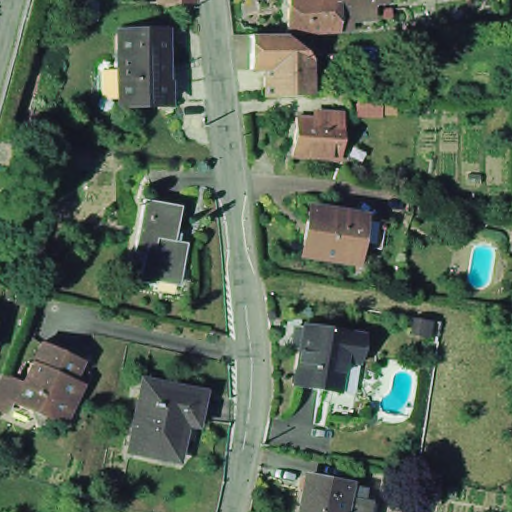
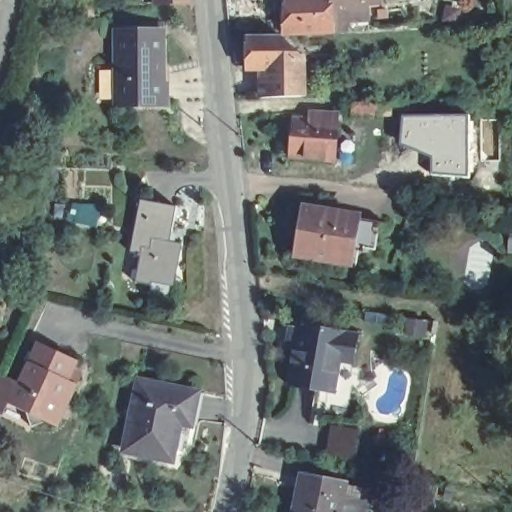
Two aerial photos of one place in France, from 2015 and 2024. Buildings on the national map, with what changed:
unchanged [(189,0),(189,3),(156,2),(156,0),(189,0)]
unchanged [(304,34),(304,33),(288,33),(290,0),(384,0),(384,1),(371,3),(373,18),(350,20),(350,29),(338,30),(338,32),(304,34)]
new [(444,3),(475,6),(471,28),(441,23),(444,3)]
unchanged [(383,10),(391,9),(392,16),(384,16),(383,10)]
unchanged [(119,38),(119,29),(166,29),(166,38),(167,107),(119,108),(119,38)]
unchanged [(277,56),(269,56),(264,56),(264,69),(251,69),(251,35),(284,35),(306,55),(277,56)]
unchanged [(337,54),(337,69),(322,70),(321,55),(337,54)]
unchanged [(264,69),(264,56),(269,56),(277,56),(306,55),(309,55),(309,96),(264,97),(264,69)]
unchanged [(351,104),(375,105),(374,116),(351,116),(351,104)]
new [(403,116),(469,114),(469,179),(430,175),(432,156),(399,145),(403,116)]
unchanged [(329,117),(341,118),(340,126),(338,165),(316,163),(291,161),(296,122),(319,124),(329,125),(329,117)]
unchanged [(186,208),(179,241),(191,244),(191,246),(186,245),(179,280),(182,280),(181,283),(163,279),(161,288),(145,284),(150,258),(148,258),(148,255),(140,254),(149,201),(186,208)]
unchanged [(373,258),(362,256),(361,261),(356,260),(354,273),(348,272),(297,263),(304,223),(304,219),(313,220),(356,228),(377,232),(373,258)]
new [(509,222),(512,222),(512,254),(507,254),(509,222)]
unchanged [(336,389),(294,380),(298,362),(296,362),(300,341),(302,341),(306,322),(361,332),(356,354),(345,352),(341,373),(336,389)]
unchanged [(58,420),(55,426),(45,421),(29,426),(24,410),(3,400),(0,408),(0,374),(8,378),(18,383),(38,343),(76,362),(70,373),(79,377),(66,402),(74,405),(66,424),(58,420)]
unchanged [(176,428),(171,450),(123,440),(138,371),(196,383),(192,405),(187,430),(176,428)]
new [(358,427),(356,456),(325,453),(328,424),(358,427)]
unchanged [(291,489),(298,490),(301,478),(334,485),(332,498),(356,504),(355,512),(286,512),(291,489)]

